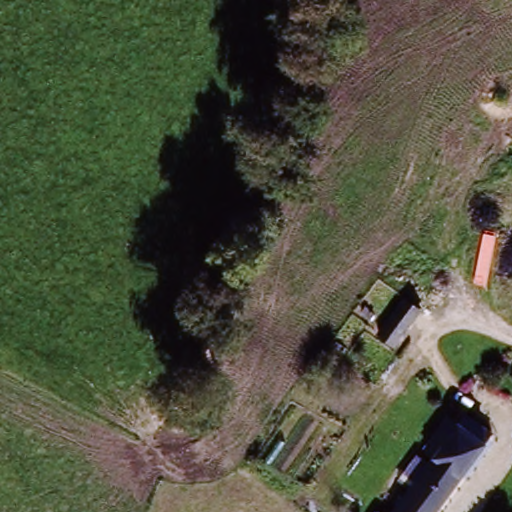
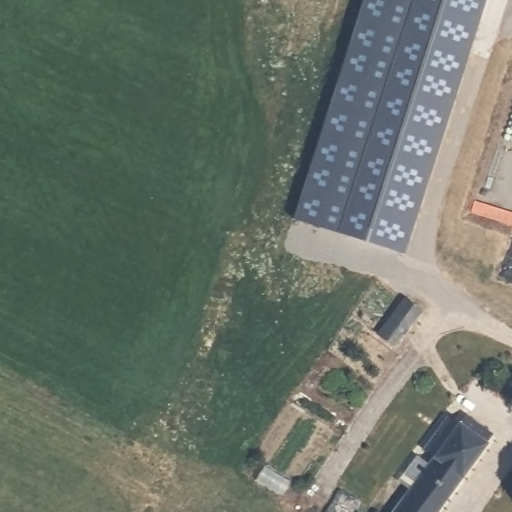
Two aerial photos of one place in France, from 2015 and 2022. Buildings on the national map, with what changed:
new [(392,272),(276,254),(335,0),(446,0),(392,272)]
unchanged [(406,304),(420,313),(397,347),(384,338),(406,304)]

